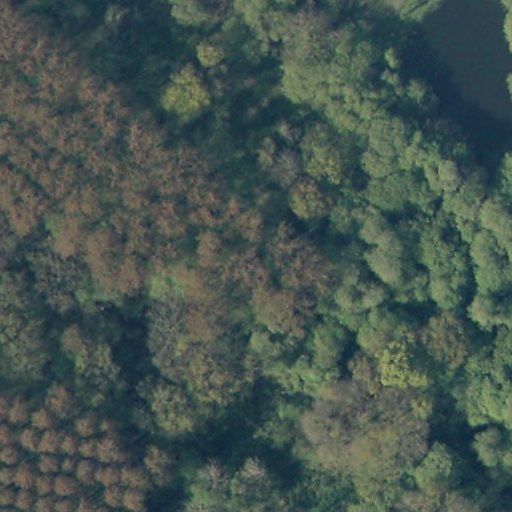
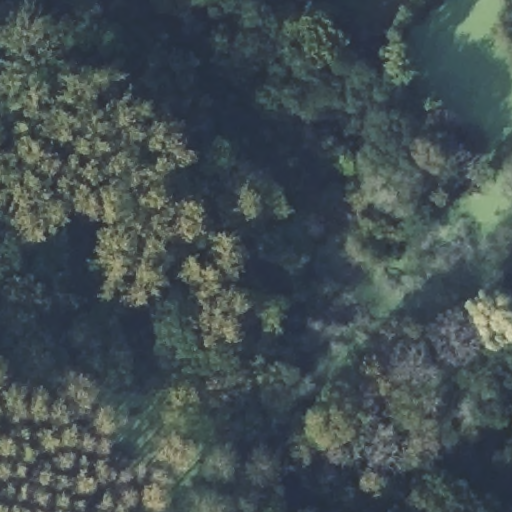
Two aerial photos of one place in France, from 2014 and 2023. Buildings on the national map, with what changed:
[]

